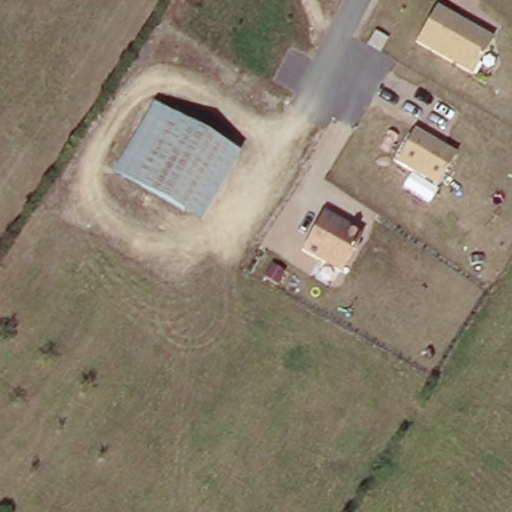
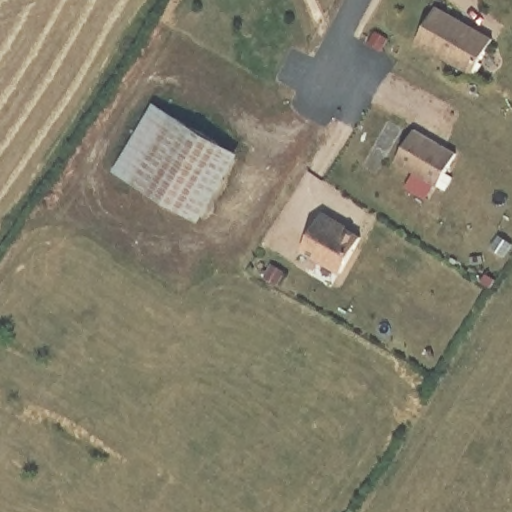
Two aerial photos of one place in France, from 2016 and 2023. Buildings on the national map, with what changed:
unchanged [(436,8),(491,41),(471,76),(415,44),(436,8)]
unchanged [(135,181),(112,167),(155,102),(175,113),(135,181)]
unchanged [(240,153),(202,220),(135,181),(175,113),(240,153)]
unchanged [(455,155),(437,187),(395,162),(414,130),(455,155)]
unchanged [(326,213),(363,235),(342,272),(303,251),(326,213)]

